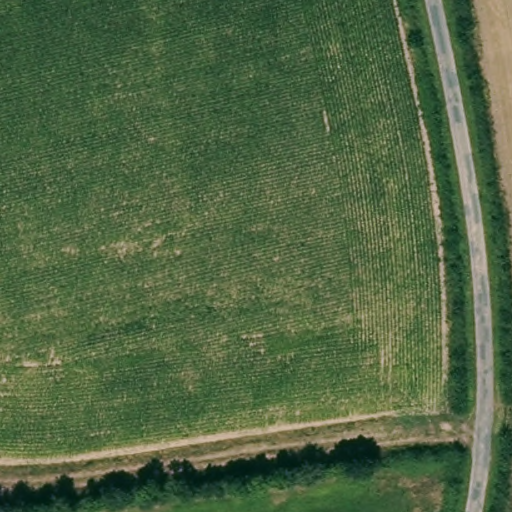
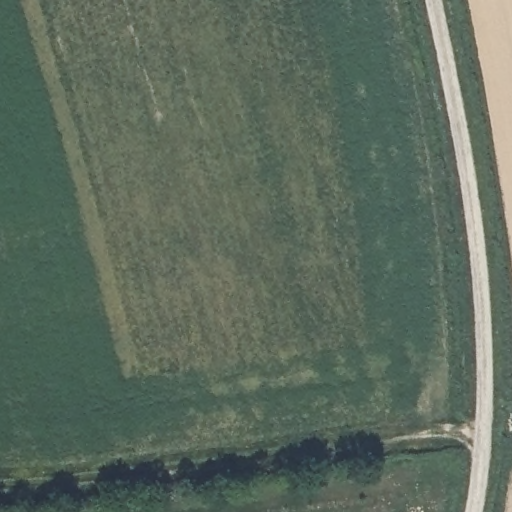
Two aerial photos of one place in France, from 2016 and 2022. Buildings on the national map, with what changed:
[]

